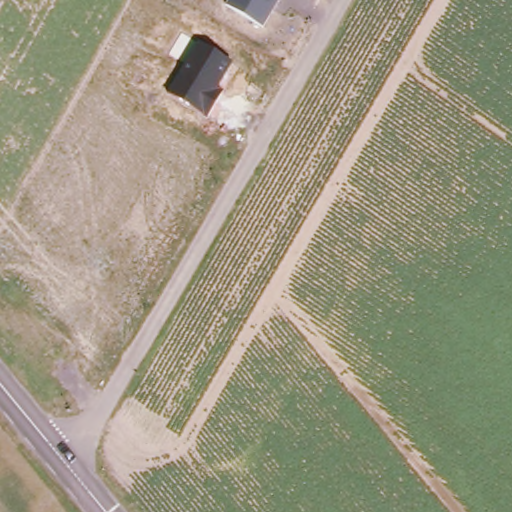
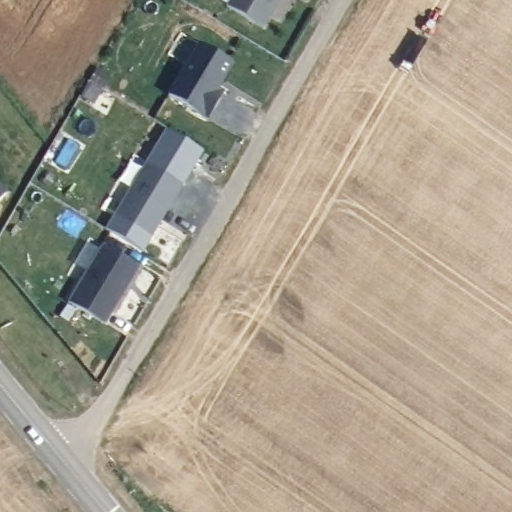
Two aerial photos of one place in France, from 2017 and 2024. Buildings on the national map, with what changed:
unchanged [(280,0),(264,28),(226,6),(230,0),(280,0)]
unchanged [(231,64),(218,90),(223,93),(207,117),(203,114),(168,95),(198,43),(231,64)]
new [(108,80),(100,92),(90,86),(98,74),(108,80)]
new [(99,95),(91,108),(81,102),(88,89),(99,95)]
new [(143,252),(105,229),(166,128),(203,151),(143,252)]
new [(0,202),(0,186),(8,194),(0,202)]
new [(101,245),(139,268),(104,324),(68,301),(101,245)]

